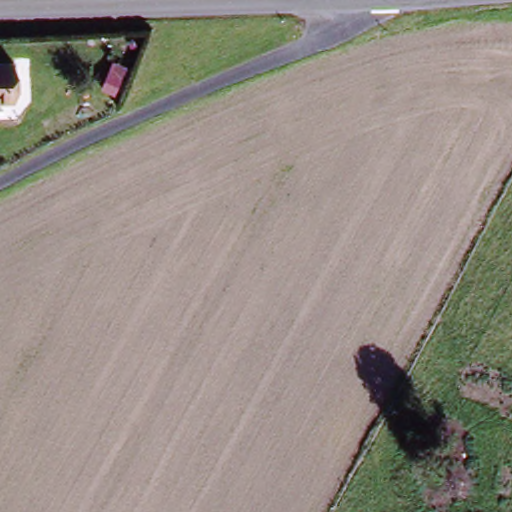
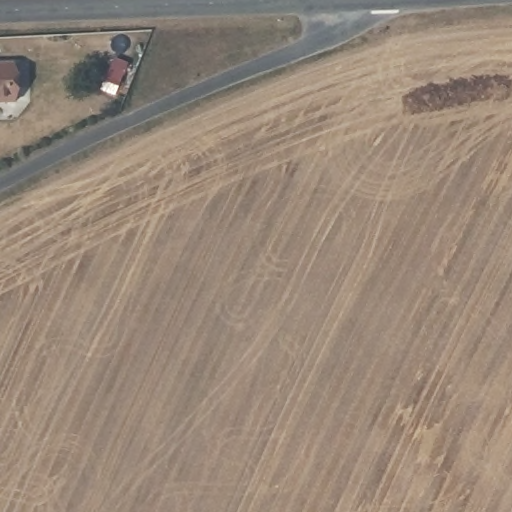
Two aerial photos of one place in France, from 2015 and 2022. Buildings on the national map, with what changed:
unchanged [(19,105),(0,106),(0,68),(18,67),(19,105)]

